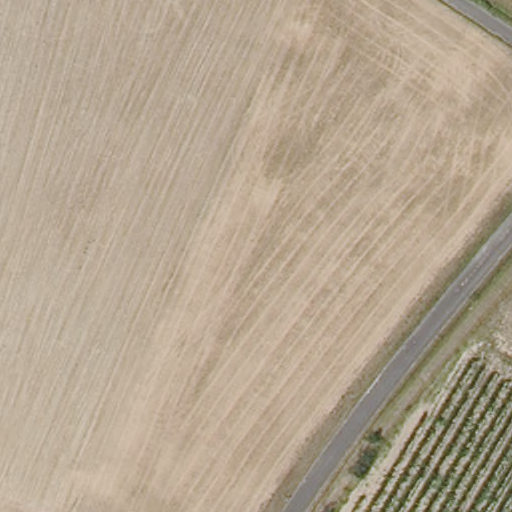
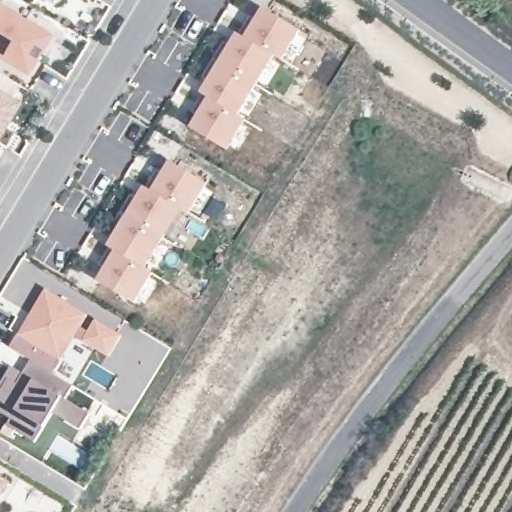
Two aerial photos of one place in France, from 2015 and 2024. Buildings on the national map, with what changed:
new [(52,36),(30,74),(0,56),(0,5),(52,36)]
new [(283,61),(277,57),(240,117),(247,122),(230,150),(190,127),(208,99),(201,94),(237,33),(245,37),(263,9),(302,32),(283,61)]
new [(23,103),(0,142),(0,89),(23,103)]
new [(191,215),(182,210),(145,269),(153,274),(135,304),(98,280),(115,252),(108,247),(144,186),(151,191),(170,161),(207,185),(191,215)]
new [(110,358),(77,335),(53,373),(72,385),(61,396),(90,412),(80,428),(52,411),(43,427),(36,441),(7,425),(11,417),(0,411),(0,385),(12,365),(24,372),(32,360),(10,347),(46,288),(90,315),(82,327),(89,331),(96,319),(123,336),(110,358)]
new [(10,482),(0,498),(0,476),(10,482)]

